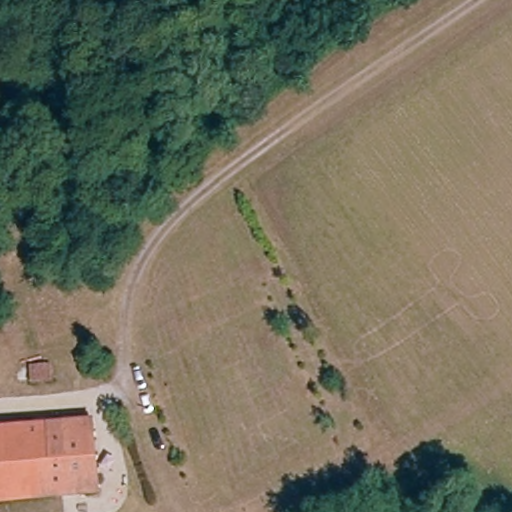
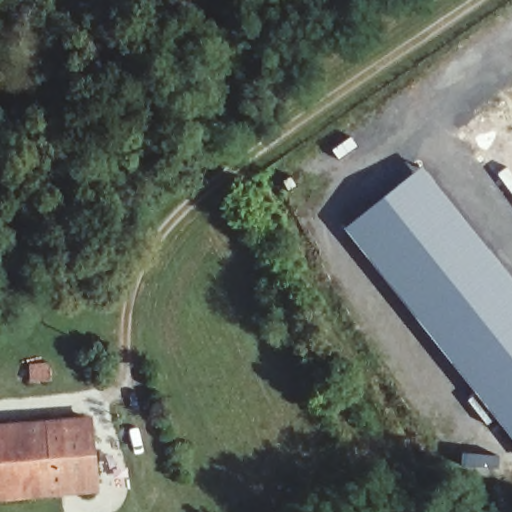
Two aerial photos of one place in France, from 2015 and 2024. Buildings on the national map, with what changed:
new [(422,165),(512,278),(512,440),(480,403),(475,397),(408,308),(342,227),(422,165)]
demolished [(77,390),(39,387),(40,359),(79,362),(77,390)]
unchanged [(90,491),(0,500),(0,428),(85,422),(90,491)]
new [(461,451),(499,456),(496,474),(460,467),(461,451)]

